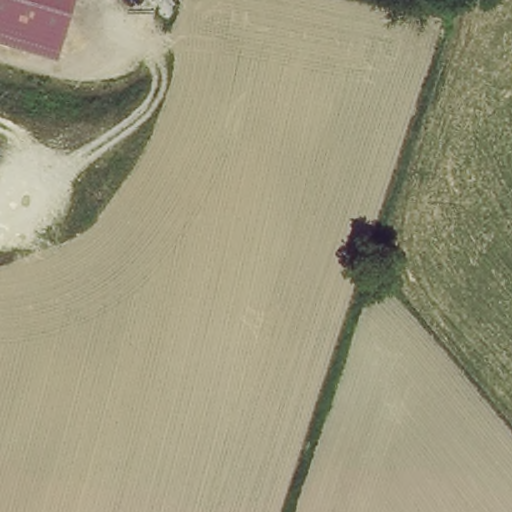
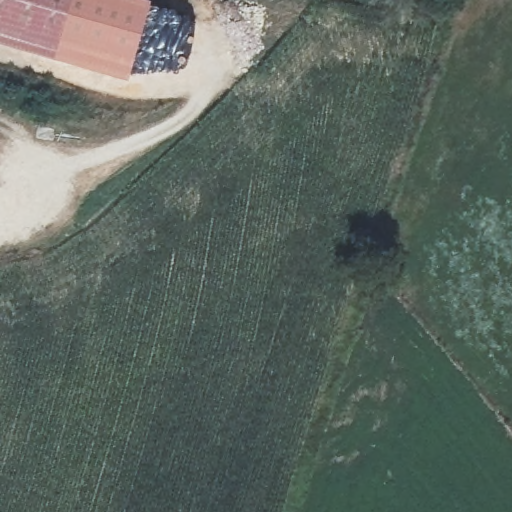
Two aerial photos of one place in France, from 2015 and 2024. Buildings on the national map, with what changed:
unchanged [(62,60),(0,42),(0,0),(78,0),(62,60)]
new [(78,0),(151,0),(129,80),(62,60),(78,0)]

